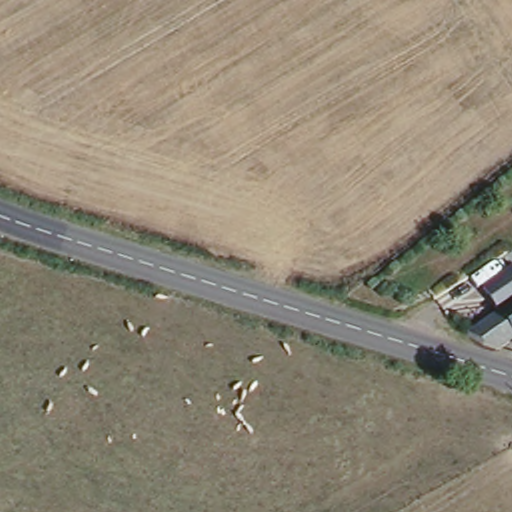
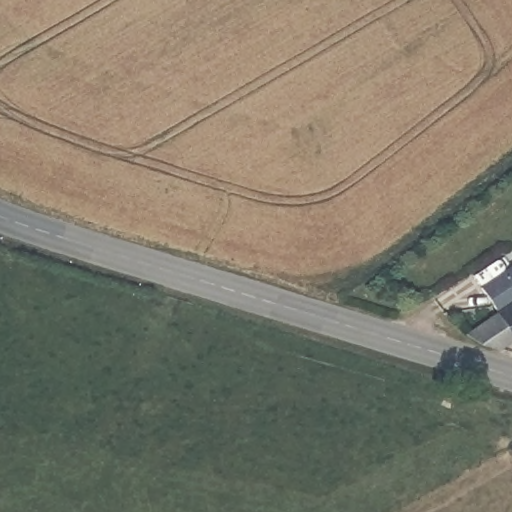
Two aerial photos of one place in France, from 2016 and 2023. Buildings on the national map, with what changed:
unchanged [(512,343),(498,350),(464,335),(500,315),(485,289),(512,272),(512,343)]

